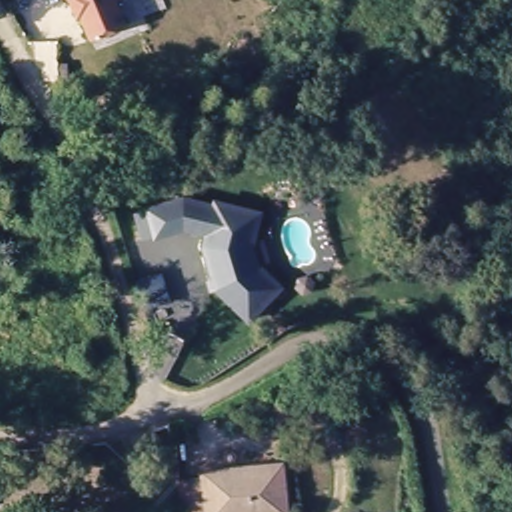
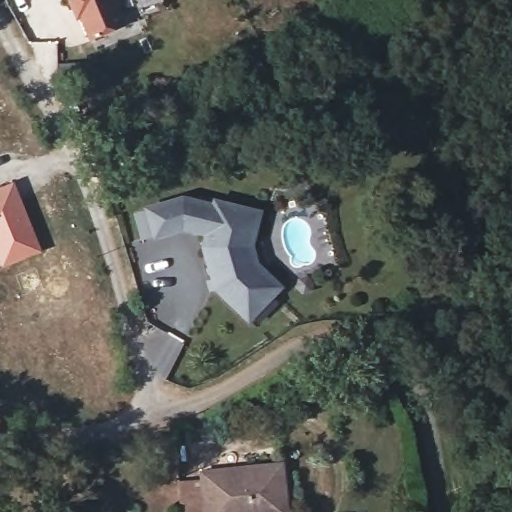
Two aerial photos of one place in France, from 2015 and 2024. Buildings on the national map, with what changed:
unchanged [(124,21),(88,35),(80,13),(74,15),(68,0),(115,0),(124,21)]
new [(13,185),(30,229),(25,230),(29,237),(32,236),(39,253),(1,267),(0,263),(0,190),(13,185)]
unchanged [(217,292),(204,250),(207,237),(184,232),(155,241),(155,240),(142,244),(134,219),(146,215),(146,213),(182,202),(213,208),(214,204),(252,213),(259,214),(251,248),(257,266),(282,288),(277,293),(250,323),(217,292)]
unchanged [(283,467),(290,510),(280,512),(183,512),(176,482),(283,467)]

